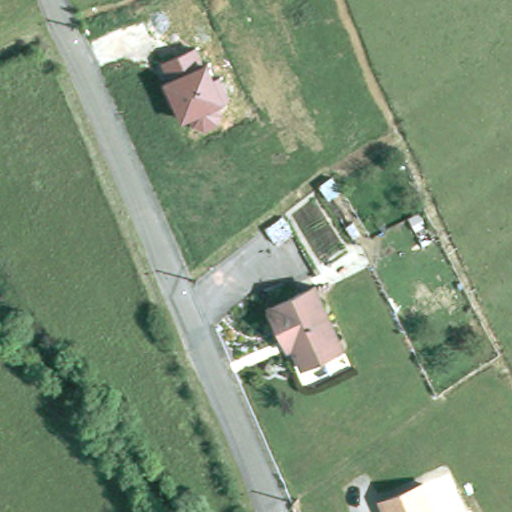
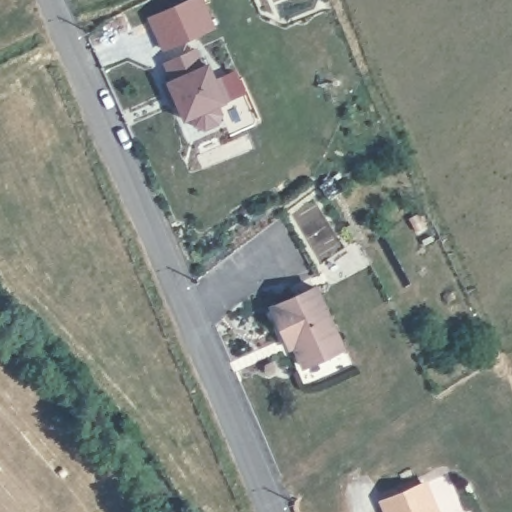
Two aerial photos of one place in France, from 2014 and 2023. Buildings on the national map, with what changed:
new [(215,27),(162,50),(147,16),(184,0),(204,0),(215,27)]
unchanged [(210,61),(215,77),(221,76),(230,99),(222,106),(223,117),(218,125),(202,129),(193,124),(191,119),(184,121),(165,80),(172,78),(162,62),(198,48),(210,61)]
unchanged [(290,337),(277,307),(320,288),(346,348),(308,364),(299,344),(293,346),(290,337)]
unchanged [(387,512),(384,504),(427,487),(437,512),(387,512)]

